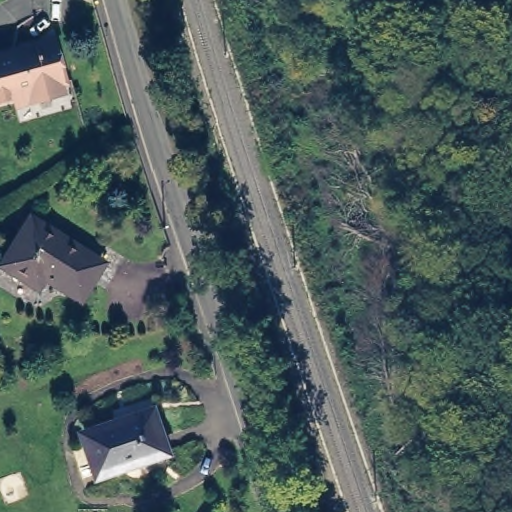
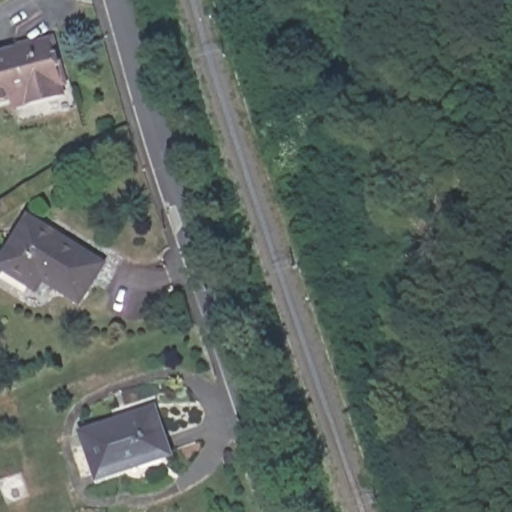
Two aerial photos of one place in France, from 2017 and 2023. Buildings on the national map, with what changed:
unchanged [(0,92),(0,47),(52,33),(64,75),(61,76),(64,86),(28,95),(16,99),(13,89),(0,92)]
unchanged [(35,211),(107,257),(86,292),(50,269),(43,279),(7,257),(35,211)]
unchanged [(154,404),(168,445),(102,466),(85,426),(154,404)]

